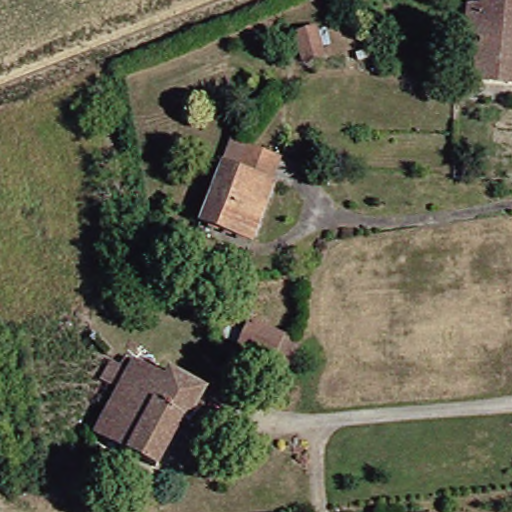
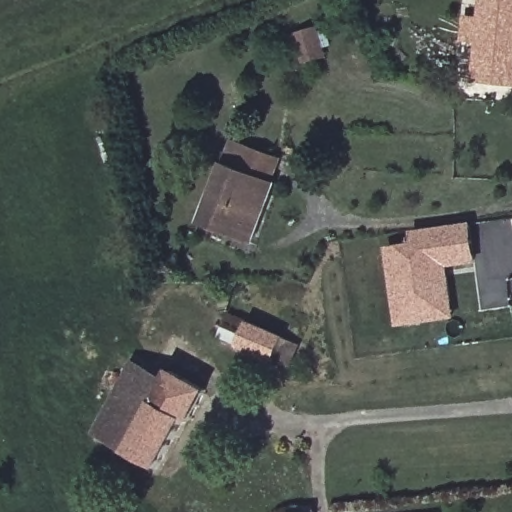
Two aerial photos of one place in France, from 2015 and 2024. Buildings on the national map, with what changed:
unchanged [(475,91),(478,49),(462,50),(465,28),(467,16),(479,16),(481,0),(512,0),(512,95),(475,91)]
unchanged [(327,30),(331,46),(323,48),(325,56),(302,63),(295,34),(317,27),(318,32),(327,30)]
unchanged [(196,233),(200,221),(231,140),(280,159),(272,182),(276,183),(252,242),(249,254),(196,233)]
new [(412,249),(410,236),(465,228),(470,265),(441,268),(447,320),(394,326),(385,253),(412,249)]
unchanged [(252,331),(290,348),(305,354),(295,377),(278,369),(278,370),(244,356),(224,347),(229,335),(235,323),(252,331)]
unchanged [(88,438),(112,394),(96,385),(106,367),(116,372),(120,363),(127,366),(159,383),(163,374),(196,392),(202,396),(186,427),(180,423),(152,473),(88,438)]

